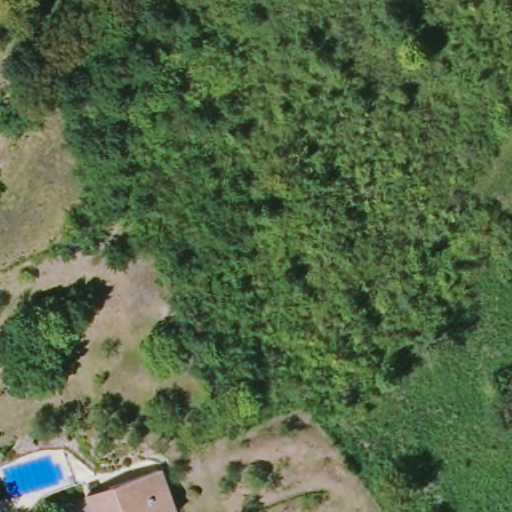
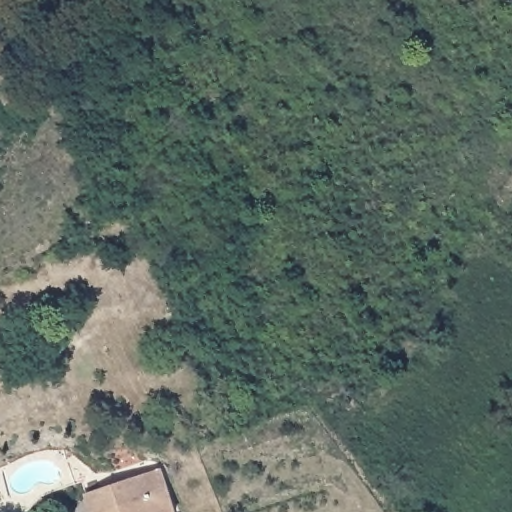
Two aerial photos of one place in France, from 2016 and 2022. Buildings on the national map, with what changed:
unchanged [(158,468),(176,512),(93,512),(87,497),(106,489),(158,468)]

